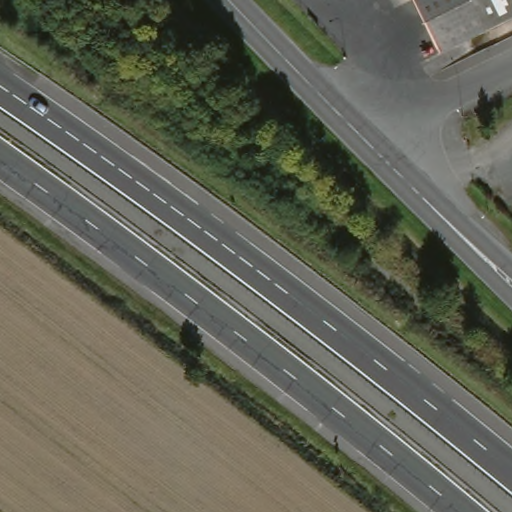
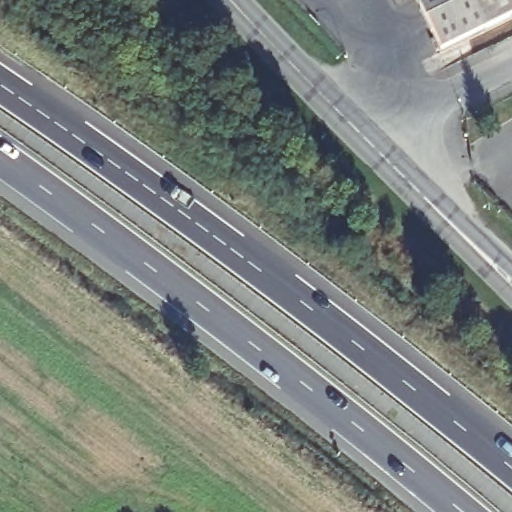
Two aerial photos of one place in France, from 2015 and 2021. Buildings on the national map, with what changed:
unchanged [(441,43),(422,0),(512,0),(512,12),(441,43)]

